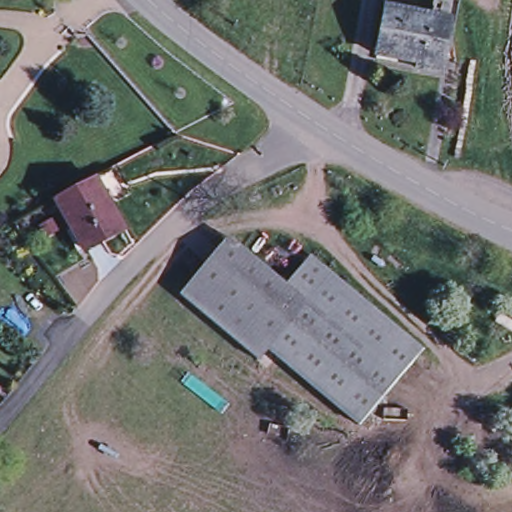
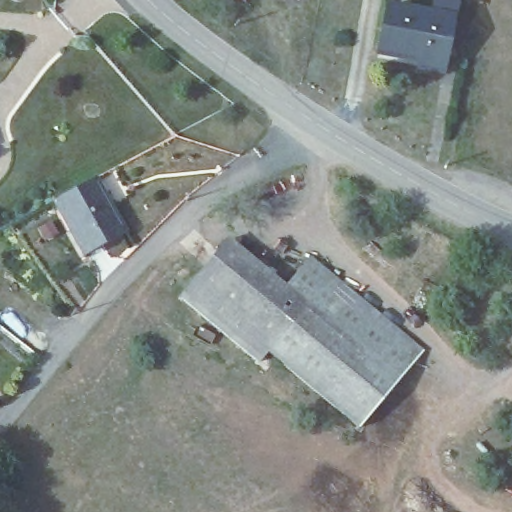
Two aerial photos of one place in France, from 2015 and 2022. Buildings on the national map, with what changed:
unchanged [(440,71),(416,67),(417,61),(375,53),(385,6),(450,18),(440,71)]
unchanged [(120,233),(82,255),(54,203),(93,182),(120,233)]
unchanged [(422,347),(349,435),(343,431),(177,290),(228,236),(285,283),(312,254),(422,347)]

